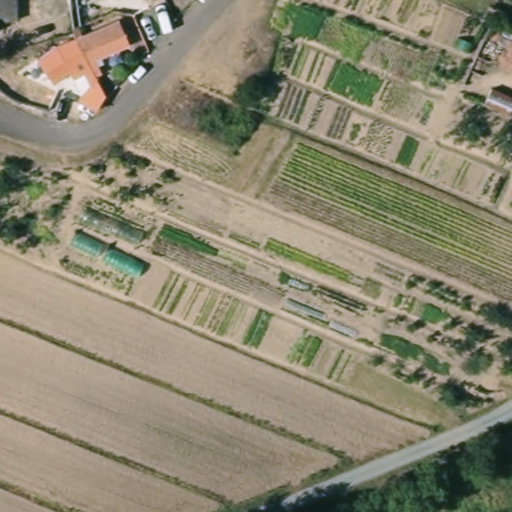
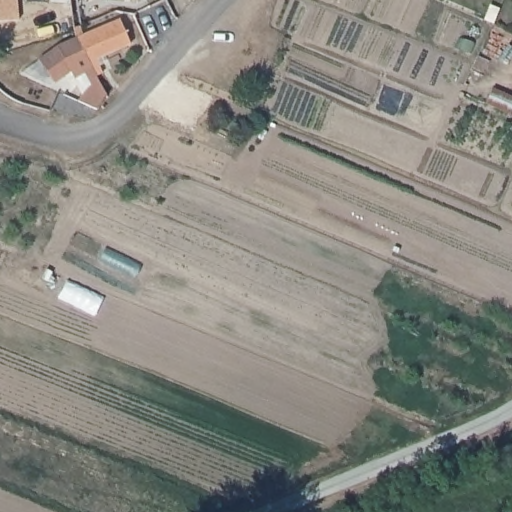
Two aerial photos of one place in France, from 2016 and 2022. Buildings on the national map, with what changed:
unchanged [(0,23),(0,0),(14,0),(17,19),(0,23)]
unchanged [(112,22),(124,40),(105,54),(85,63),(73,39),(112,22)]
unchanged [(69,104),(77,96),(65,75),(46,86),(31,60),(52,48),(73,39),(85,63),(103,97),(88,114),(69,104)]

